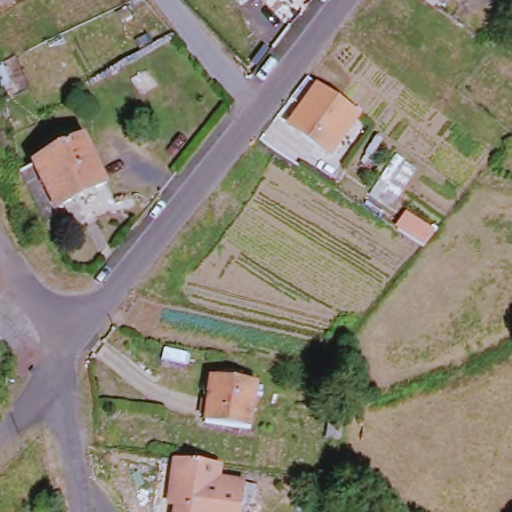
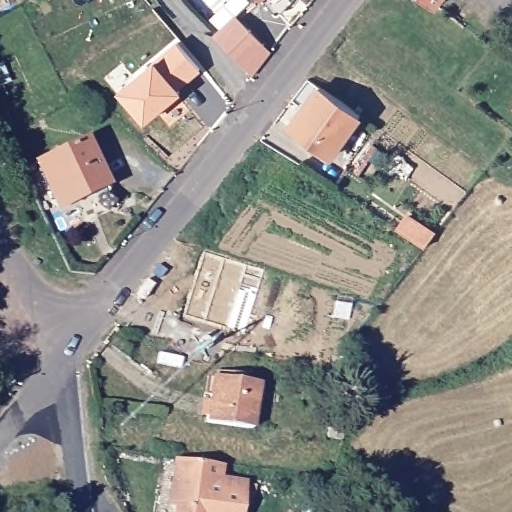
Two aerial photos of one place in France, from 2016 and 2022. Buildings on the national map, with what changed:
new [(266,0),(292,0),(277,16),(266,0)]
demolished [(268,13),(274,0),(282,0),(298,9),(287,23),(268,13)]
unchanged [(418,0),(447,0),(438,12),(436,11),(418,0)]
new [(235,13),(271,50),(252,73),(213,34),(235,13)]
new [(201,69),(179,88),(182,91),(145,125),(117,91),(155,59),(176,40),(201,69)]
unchanged [(316,85),(360,110),(336,154),(292,129),(316,85)]
unchanged [(41,198),(24,159),(23,152),(76,126),(108,193),(51,219),(41,198)]
unchanged [(202,400),(209,401),(210,396),(203,395),(206,377),(210,377),(212,378),(255,383),(248,429),(211,424),(205,423),(206,417),(200,416),(202,400)]
unchanged [(221,461),(220,474),(245,479),(239,512),(178,512),(179,500),(170,498),(178,454),(221,461)]

